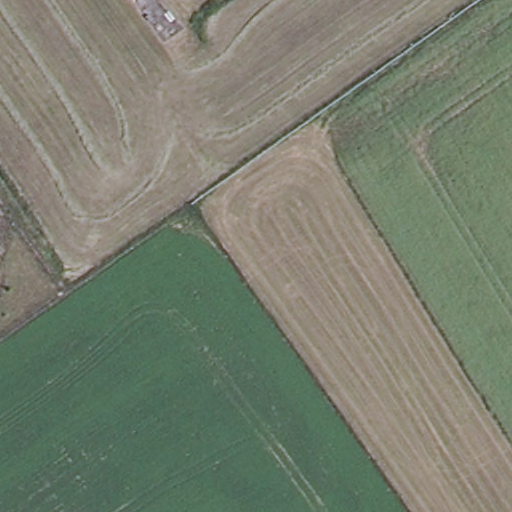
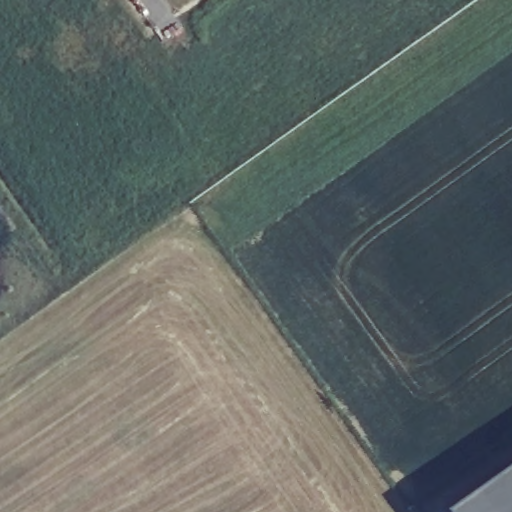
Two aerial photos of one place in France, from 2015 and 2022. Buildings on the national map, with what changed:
new [(512,512),(458,512),(512,474),(512,512)]

